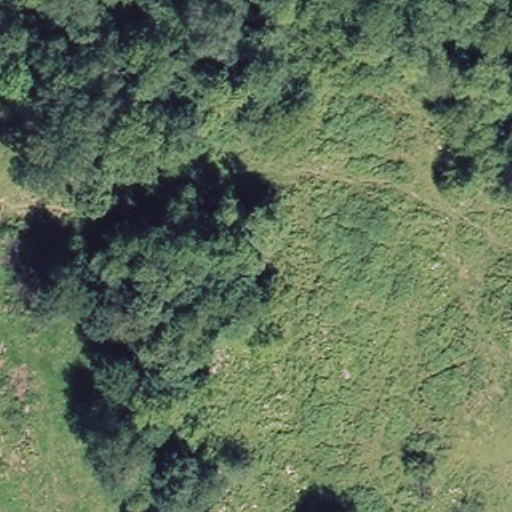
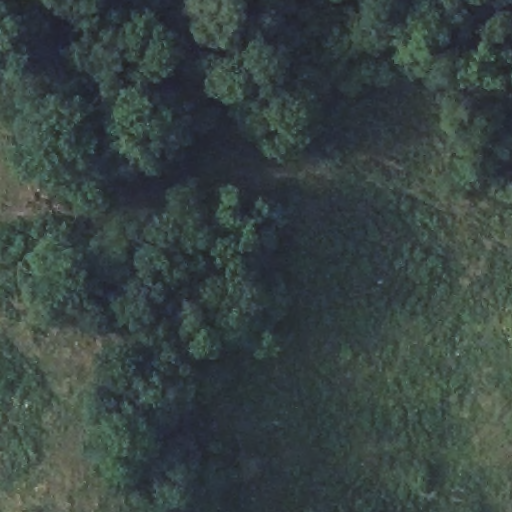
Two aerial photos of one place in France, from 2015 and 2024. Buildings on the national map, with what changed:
[]

